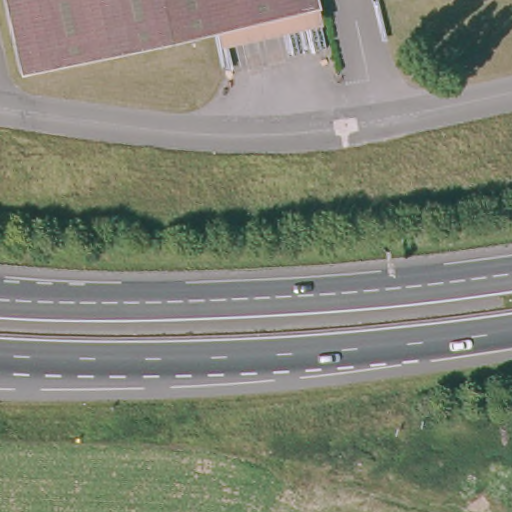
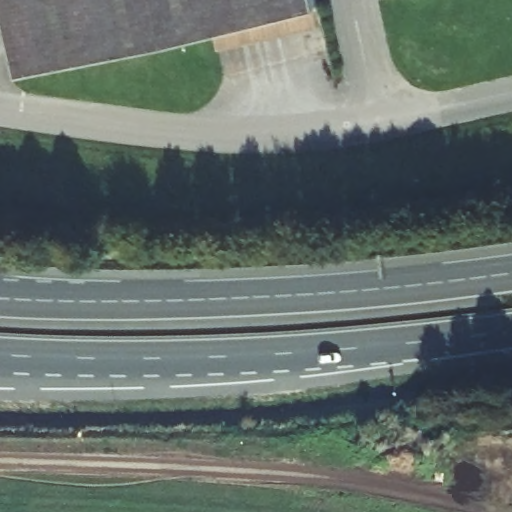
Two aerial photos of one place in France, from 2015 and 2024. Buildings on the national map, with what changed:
unchanged [(318,3),(18,70),(2,0),(317,0),(318,3)]

